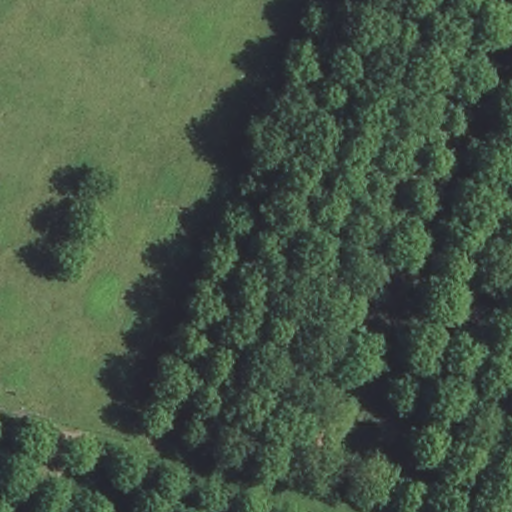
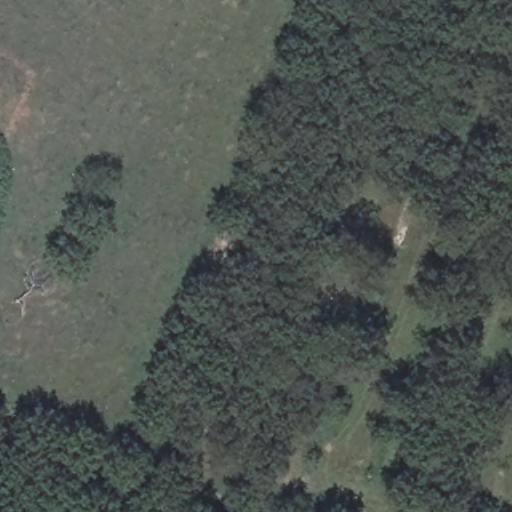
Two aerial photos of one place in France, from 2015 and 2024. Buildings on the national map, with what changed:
[]

